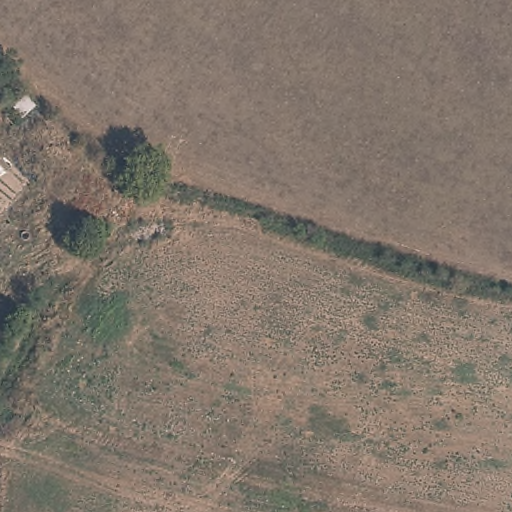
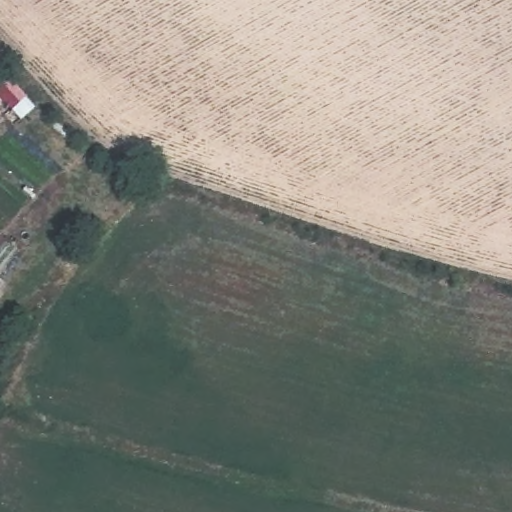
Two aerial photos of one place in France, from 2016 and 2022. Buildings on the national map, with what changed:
unchanged [(34,107),(21,120),(8,104),(0,95),(0,79),(5,75),(25,97),(34,107)]
unchanged [(38,440),(30,434),(34,427),(42,433),(38,440)]

